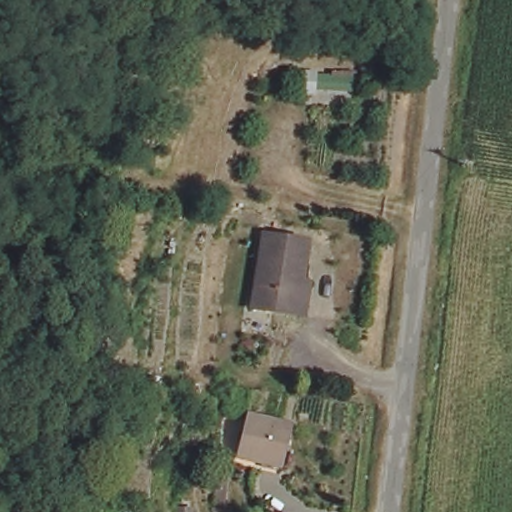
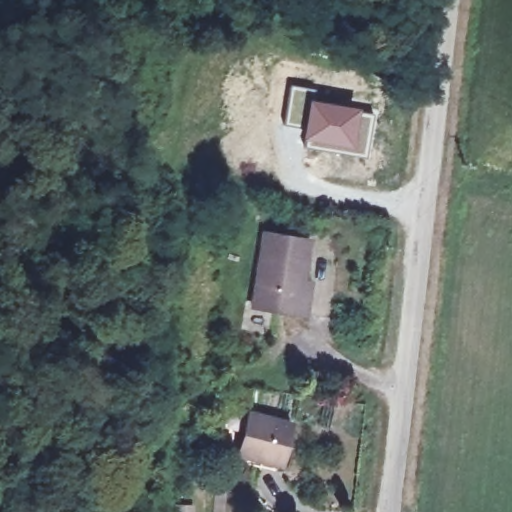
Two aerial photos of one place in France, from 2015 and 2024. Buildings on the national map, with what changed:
unchanged [(305,85),(307,73),(333,75),(335,69),(357,72),(354,90),(305,85)]
new [(290,88),(309,90),(309,99),(373,110),(367,157),(302,146),(303,126),(287,125),(290,88)]
unchanged [(303,321),(292,318),(248,311),(263,237),(307,245),(300,287),(310,289),(303,321)]
unchanged [(298,435),(285,476),(245,464),(257,423),(298,435)]
unchanged [(226,473),(222,509),(212,508),(215,472),(226,473)]
unchanged [(191,512),(177,512),(177,497),(191,497),(191,512)]

